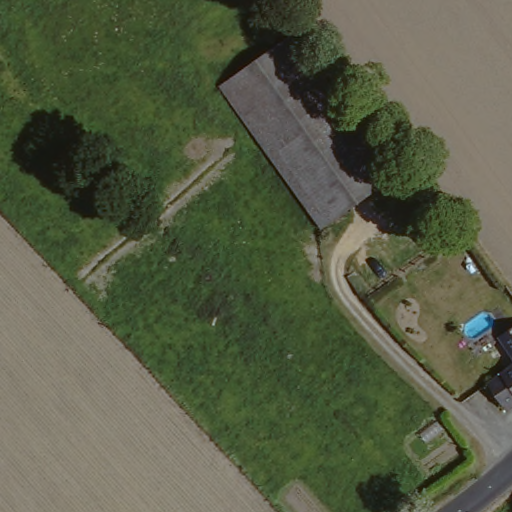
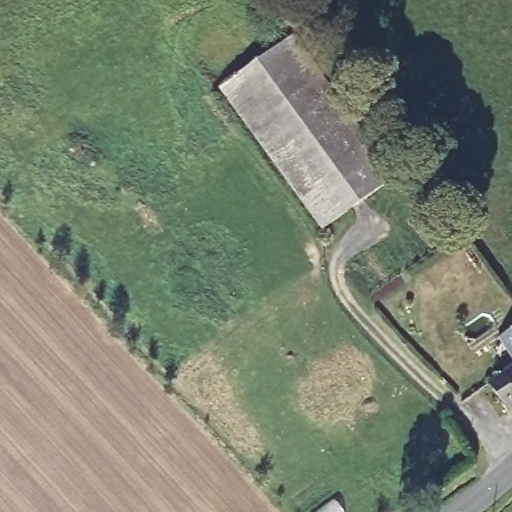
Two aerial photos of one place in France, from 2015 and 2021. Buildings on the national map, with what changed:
unchanged [(220,90),(293,36),(396,182),(320,232),(220,90)]
unchanged [(505,339),(512,334),(512,349),(505,339)]
unchanged [(512,371),(512,410),(511,411),(492,385),(512,371)]

